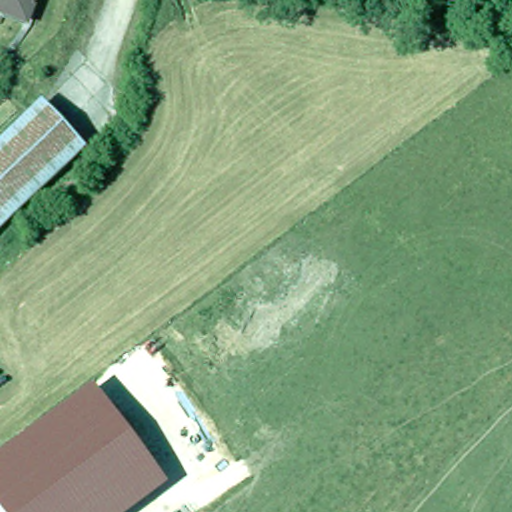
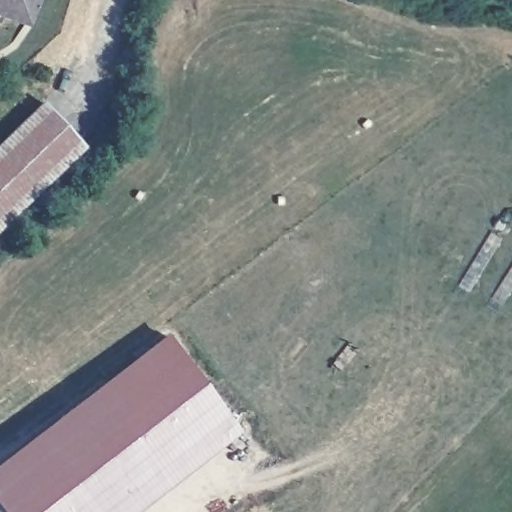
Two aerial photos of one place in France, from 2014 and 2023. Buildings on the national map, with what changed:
unchanged [(0,11),(0,0),(34,0),(27,20),(0,11)]
unchanged [(0,139),(41,99),(84,144),(0,225),(0,139)]
new [(165,332),(240,429),(163,487),(93,386),(165,332)]
unchanged [(0,512),(0,458),(93,386),(163,487),(132,512),(0,512)]

